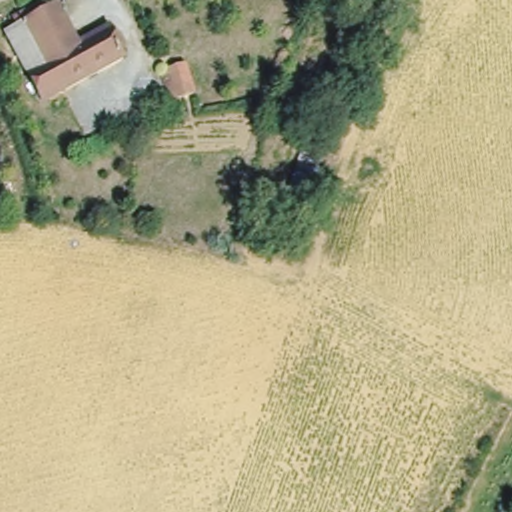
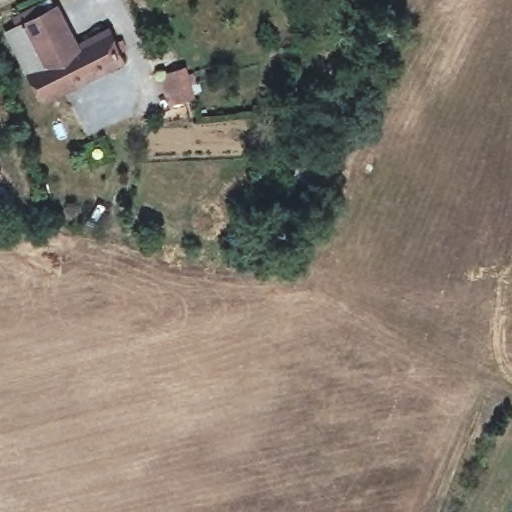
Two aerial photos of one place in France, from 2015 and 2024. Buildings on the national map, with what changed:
unchanged [(53,0),(75,46),(102,31),(116,60),(38,104),(6,42),(21,35),(15,23),(53,0)]
unchanged [(160,74),(183,65),(192,94),(170,103),(160,74)]

